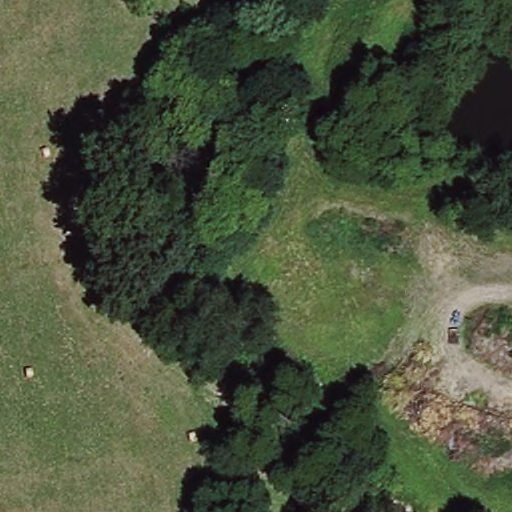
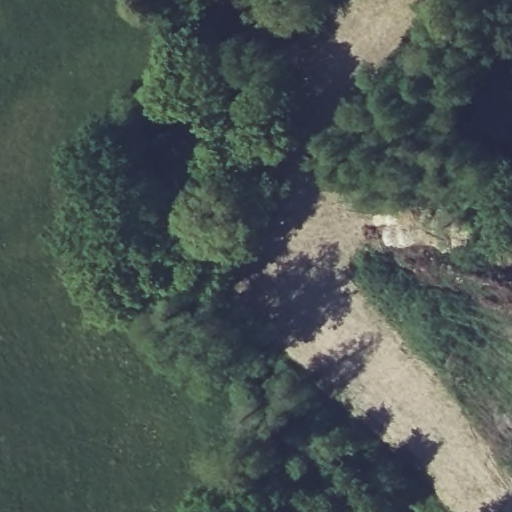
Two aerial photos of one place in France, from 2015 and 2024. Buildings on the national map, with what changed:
[]

